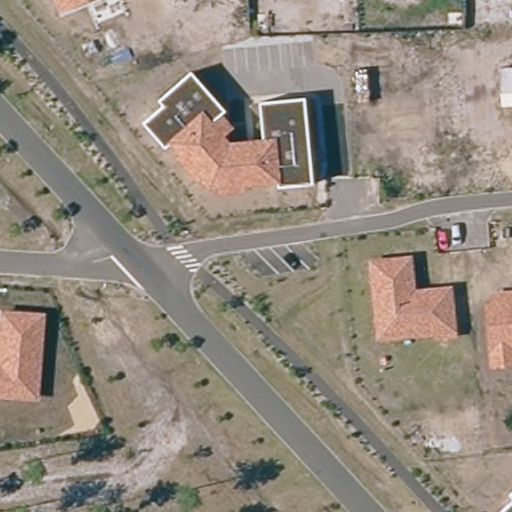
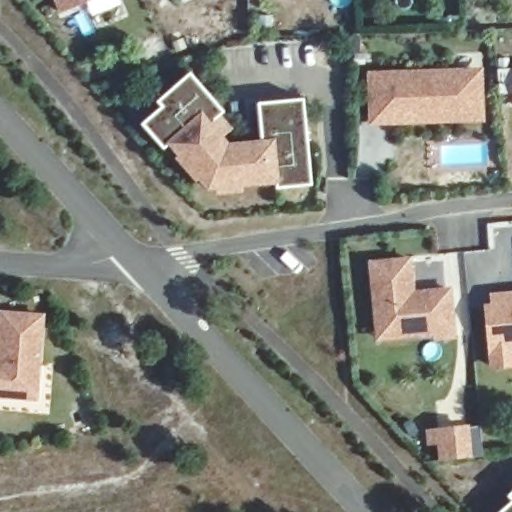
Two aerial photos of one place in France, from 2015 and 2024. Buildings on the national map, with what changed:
unchanged [(94,0),(59,14),(54,0),(94,0)]
new [(483,65),(486,120),(370,125),(367,69),(483,65)]
unchanged [(313,186),(276,190),(276,185),(245,188),(246,194),(215,196),(170,146),(165,150),(143,125),(163,107),(158,102),(192,73),(226,112),(224,115),(235,126),(224,136),(229,141),(261,138),(258,103),(305,99),(313,186)]
unchanged [(367,260),(412,257),(415,290),(453,287),(458,340),(434,342),(433,338),(375,342),(367,260)]
unchanged [(494,293),(512,291),(512,367),(489,369),(482,310),(494,293)]
unchanged [(46,314),(39,402),(0,399),(0,311),(46,314)]
new [(437,445),(428,445),(427,429),(480,423),(483,457),(439,461),(437,445)]
unchanged [(512,494),(512,499),(509,497),(512,494)]
unchanged [(512,501),(512,512),(499,512),(512,501)]

